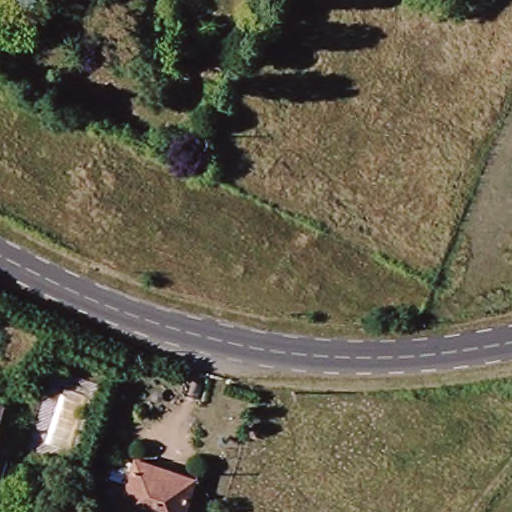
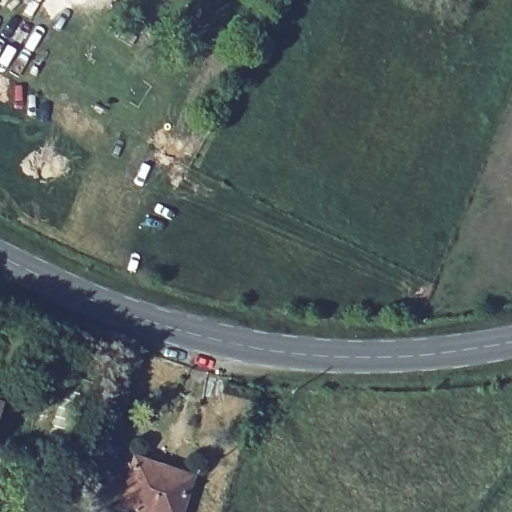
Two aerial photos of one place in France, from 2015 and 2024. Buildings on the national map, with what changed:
unchanged [(3,418),(0,427),(0,417),(3,418)]
unchanged [(198,478),(188,512),(146,512),(105,499),(113,474),(134,481),(140,460),(198,478)]

